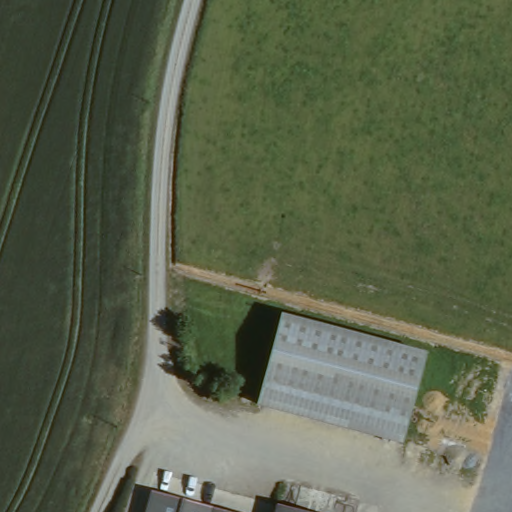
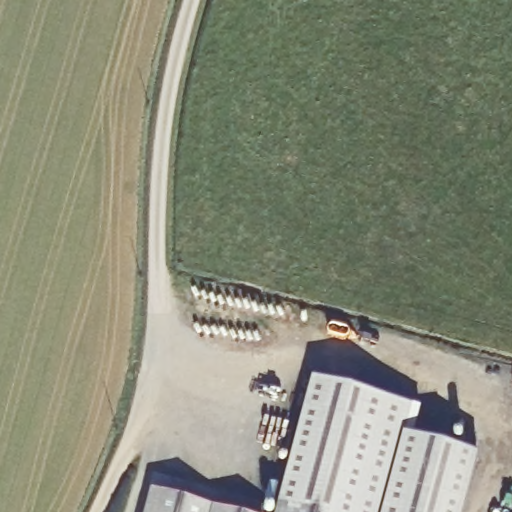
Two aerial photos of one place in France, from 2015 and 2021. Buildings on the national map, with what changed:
new [(288,509),(276,507),(312,379),(414,407),(406,436),(479,458),(464,512),(296,512),(288,509)]
unchanged [(153,495),(217,512),(148,512),(153,495)]
unchanged [(296,512),(275,512),(276,507),(288,509),(296,512)]

